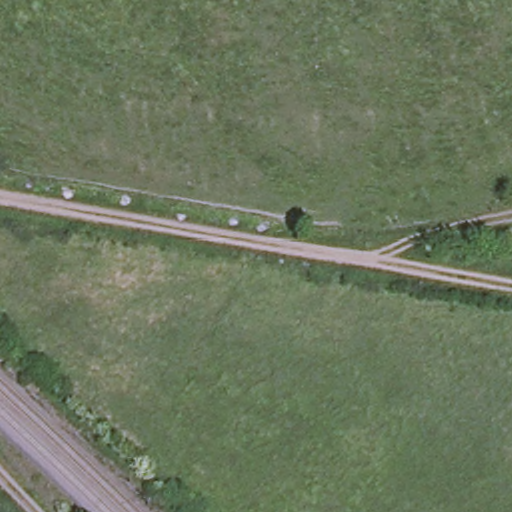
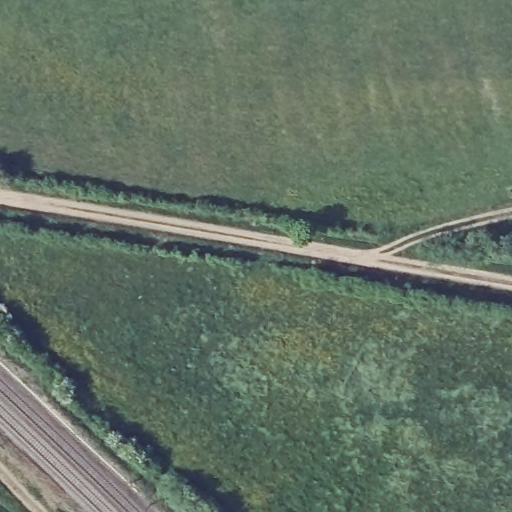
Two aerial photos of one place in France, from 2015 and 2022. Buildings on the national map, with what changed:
[]

